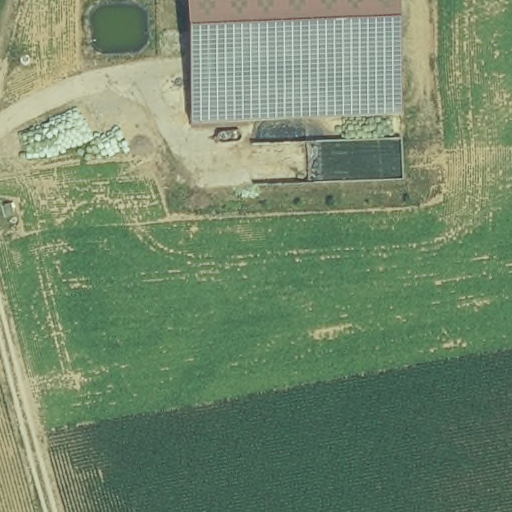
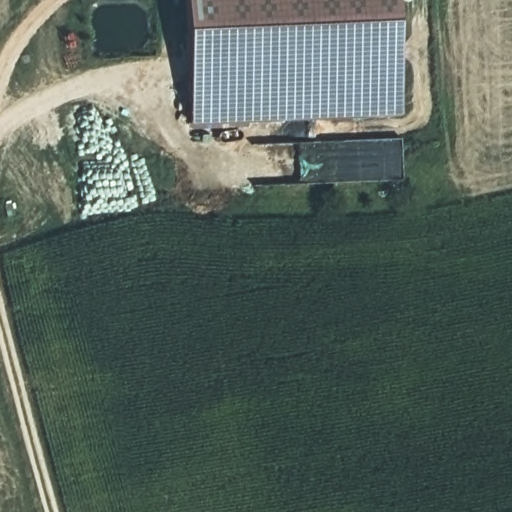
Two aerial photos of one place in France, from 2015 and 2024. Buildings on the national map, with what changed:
unchanged [(199,123),(188,0),(396,0),(401,113),(199,123)]

